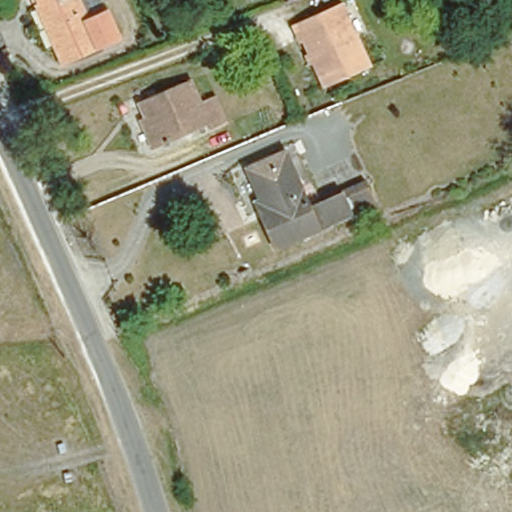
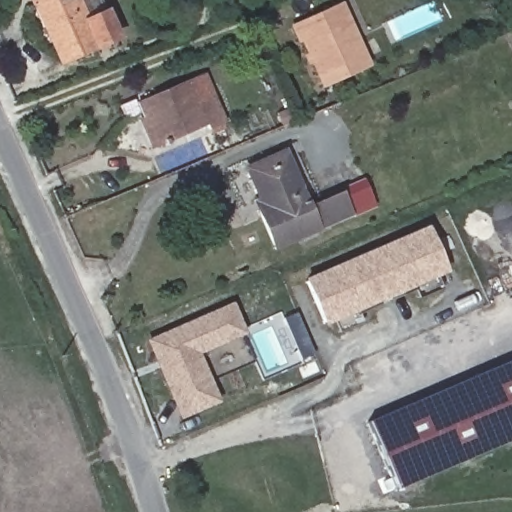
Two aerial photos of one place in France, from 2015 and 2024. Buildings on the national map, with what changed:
unchanged [(64,60),(46,26),(53,22),(43,0),(101,0),(117,36),(64,60)]
unchanged [(366,64),(321,81),(296,17),(337,0),(340,0),(366,64)]
unchanged [(193,106),(209,99),(216,115),(151,143),(132,99),(182,79),(193,106)]
unchanged [(265,195),(269,193),(256,163),(295,147),(313,191),(369,168),(384,204),(285,242),(265,195)]
new [(427,226),(448,273),(325,326),(305,279),(427,226)]
new [(226,305),(237,330),(191,351),(213,399),(178,415),(145,341),(226,305)]
new [(399,484),(394,486),(367,422),(512,361),(512,441),(401,488),(399,484)]

